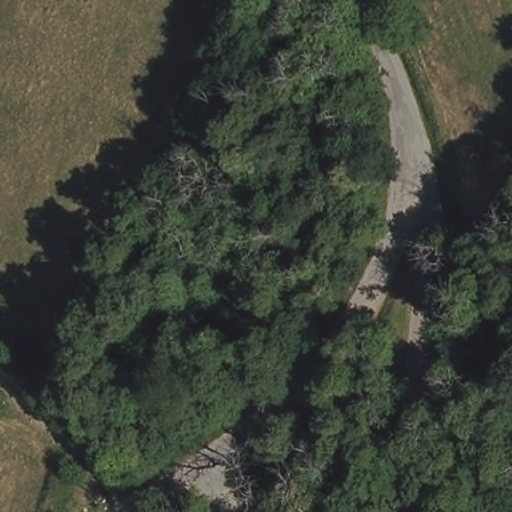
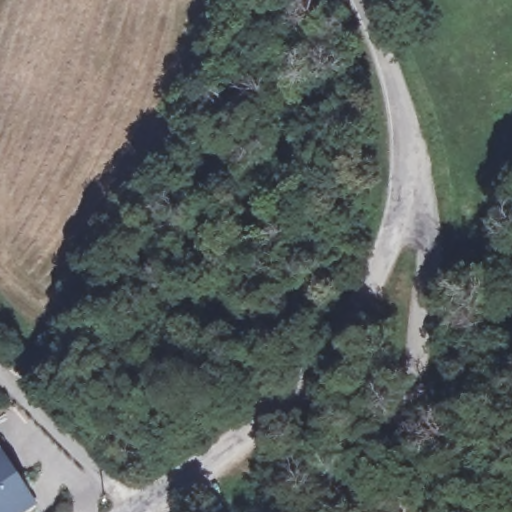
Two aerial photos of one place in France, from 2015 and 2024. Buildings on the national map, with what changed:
new [(39,502),(26,512),(0,512),(0,448),(39,502)]

